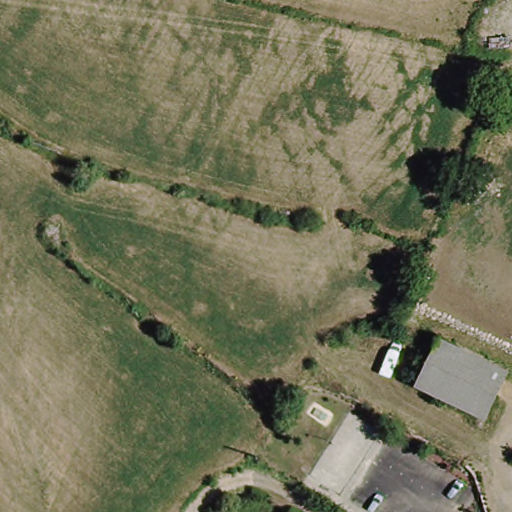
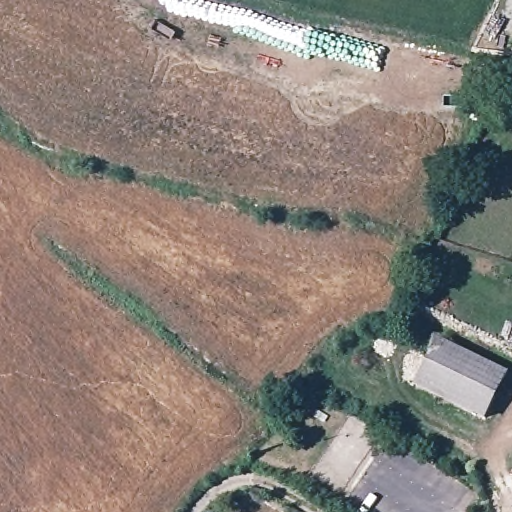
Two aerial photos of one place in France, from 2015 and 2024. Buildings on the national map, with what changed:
unchanged [(436,349),(506,371),(492,418),(423,397),(436,349)]

